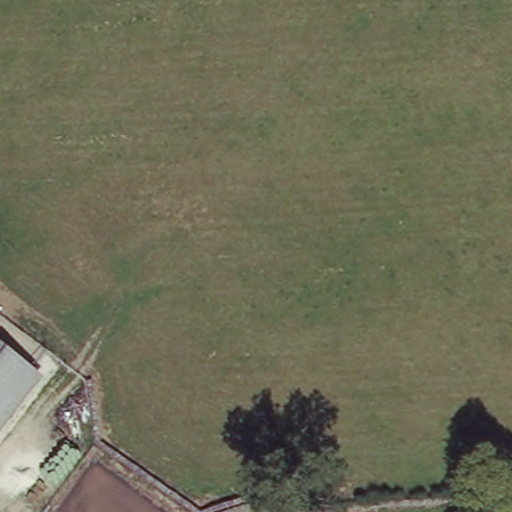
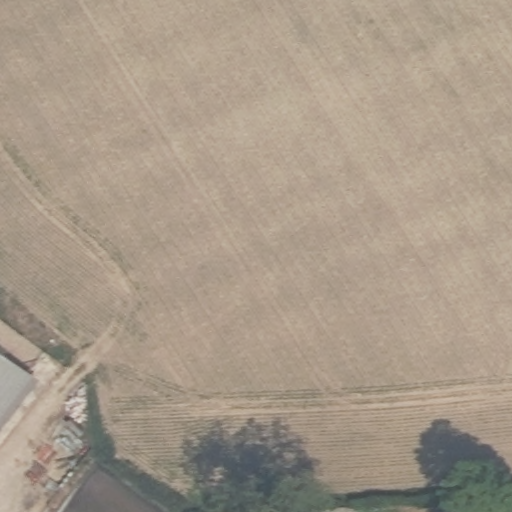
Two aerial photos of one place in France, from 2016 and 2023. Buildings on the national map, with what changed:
unchanged [(0,435),(0,347),(42,380),(0,435)]

